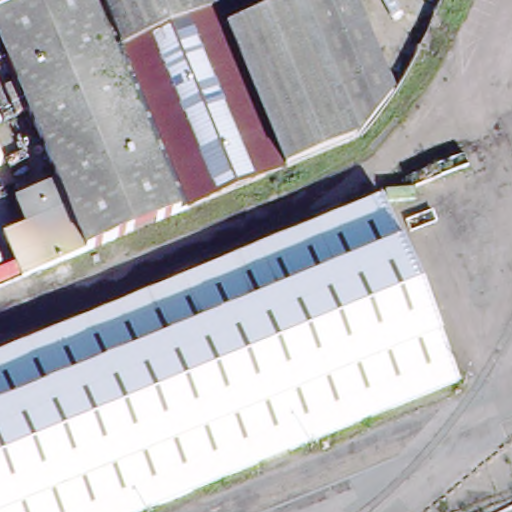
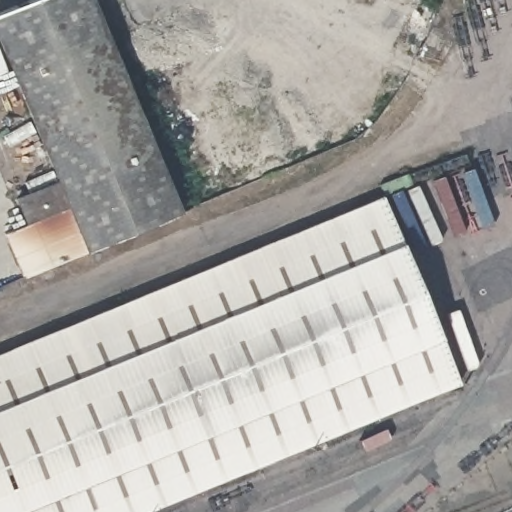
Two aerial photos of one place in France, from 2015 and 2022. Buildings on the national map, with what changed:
unchanged [(86,250),(58,181),(0,39),(0,10),(25,0),(94,0),(181,211),(86,250)]
demolished [(242,23),(297,0),(356,0),(395,91),(393,93),(392,95),(390,96),(390,98),(388,100),(387,101),(386,103),(385,105),(384,106),(382,108),(381,110),(380,111),(379,112),(378,114),(376,116),(375,117),(374,119),(373,120),(371,122),(370,124),(369,125),(368,126),(366,129),(365,130),(364,131),(362,133),(361,135),(360,136),(359,137),(358,138),(357,139),(181,211),(94,0),(213,0),(215,4),(224,0),(233,0),(242,23)]
unchanged [(5,232),(26,224),(16,198),(58,181),(86,250),(22,276),(5,232)]
unchanged [(460,380),(135,512),(0,512),(0,355),(385,197),(460,380)]

